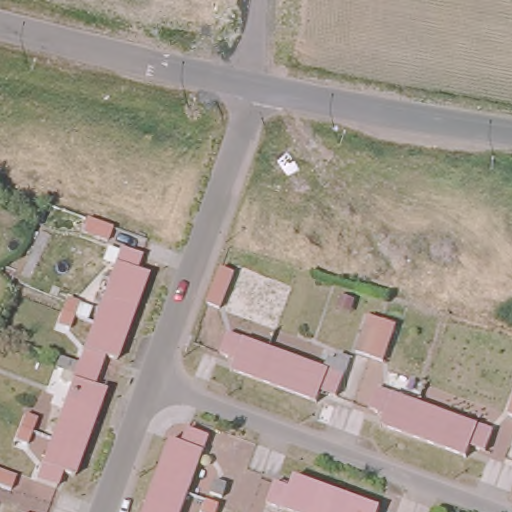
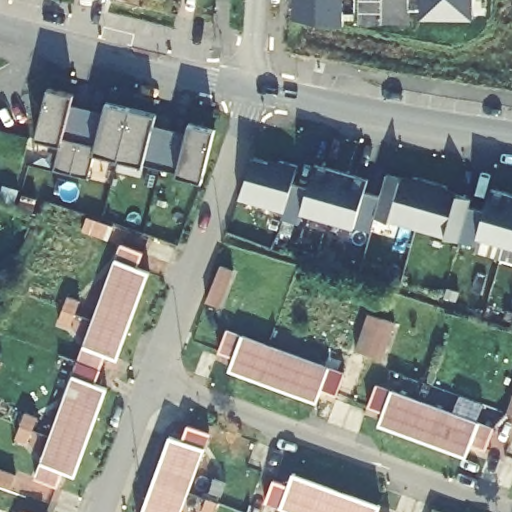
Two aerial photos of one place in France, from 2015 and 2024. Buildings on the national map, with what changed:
new [(295,0),(344,0),(344,26),(295,18),(295,0)]
new [(474,18),(422,18),(422,0),(474,0),(474,18)]
new [(201,179),(96,152),(88,178),(55,169),(61,143),(37,138),(49,89),(75,95),(71,107),(104,115),(106,103),(157,115),(154,124),(188,134),(190,124),(214,130),(201,179)]
new [(370,174),(365,190),(354,228),(303,214),(300,221),(283,217),(285,211),(239,197),(255,158),(278,164),(280,159),(295,164),(291,183),(309,188),(317,158),(370,174)]
new [(468,205),(458,240),(376,216),(370,232),(354,228),(365,190),(383,195),(390,172),(407,177),(410,170),(450,183),(448,189),(470,195),(468,205)]
new [(477,245),(458,240),(468,205),(485,210),(490,190),(512,196),(512,246),(479,237),(477,245)]
unchanged [(94,217),(89,231),(62,221),(67,207),(94,217)]
unchanged [(95,304),(110,264),(86,256),(93,237),(137,253),(131,269),(141,273),(127,313),(126,315),(95,304)]
unchanged [(214,262),(228,267),(214,303),(201,298),(214,262)]
unchanged [(75,361),(95,304),(126,315),(110,358),(101,354),(96,369),(75,361)]
unchanged [(270,383),(226,367),(232,353),(217,348),(224,330),(281,351),(270,383)]
unchanged [(281,351),(338,372),(332,390),(317,384),(312,398),(270,383),(281,351)]
unchanged [(53,419),(75,361),(96,369),(90,384),(100,388),(84,431),(53,419)]
unchanged [(421,438),(418,438),(377,422),(382,409),(366,403),(373,385),(432,407),(421,438)]
unchanged [(432,407),(490,428),(483,446),(468,440),(463,454),(421,438),(432,407)]
unchanged [(84,431),(69,473),(58,469),(53,484),(33,476),(53,419),(84,431)]
unchanged [(157,480),(172,437),(183,441),(189,426),(209,433),(187,491),(157,480)]
unchanged [(309,512),(269,497),(277,475),(290,480),(294,470),(337,486),(327,512),(309,512)]
unchanged [(180,512),(145,512),(157,480),(187,491),(180,512)]
unchanged [(379,502),(375,512),(327,512),(337,486),(379,502)]

